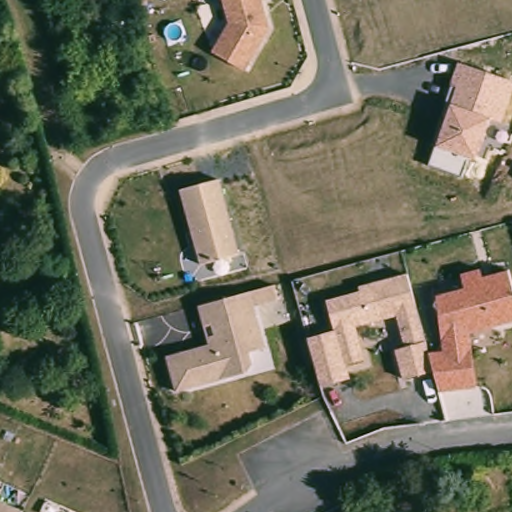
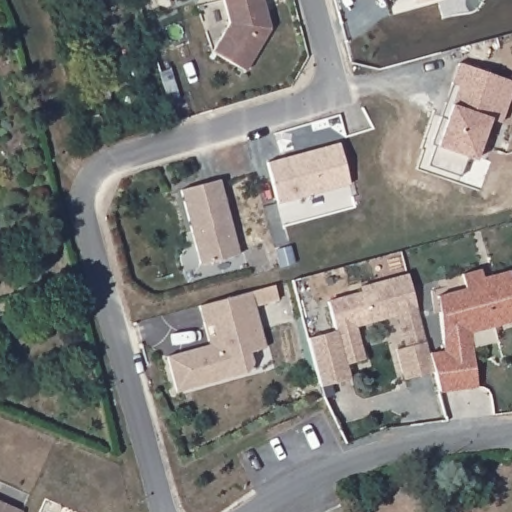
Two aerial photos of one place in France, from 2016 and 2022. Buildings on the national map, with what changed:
unchanged [(245,72),(212,52),(229,24),(222,0),(261,0),(262,2),(264,11),(260,12),(269,30),(245,72)]
unchanged [(428,164),(436,147),(450,102),(458,62),(512,81),(512,90),(502,122),(488,117),(475,160),(468,158),(460,176),(428,164)]
unchanged [(137,67),(141,80),(121,86),(117,74),(137,67)]
unchanged [(142,130),(134,132),(130,121),(156,112),(160,124),(142,130)]
new [(278,202),(266,162),(339,142),(350,184),(278,202)]
unchanged [(180,190),(217,179),(239,255),(200,265),(180,190)]
unchanged [(432,372),(402,379),(395,351),(405,346),(395,317),(355,327),(363,359),(345,363),(348,378),(320,386),(307,337),(334,329),(326,300),(360,291),(358,287),(406,275),(428,351),(442,350),(436,294),(463,287),(460,273),(480,268),(481,277),(508,271),(512,288),(512,321),(469,332),(475,388),(439,392),(432,372)]
unchanged [(250,292),(265,348),(250,352),(252,363),(247,373),(176,392),(166,355),(209,343),(205,326),(199,306),(210,303),(250,292)]
unchanged [(22,512),(0,512),(0,500),(22,511),(22,512)]

